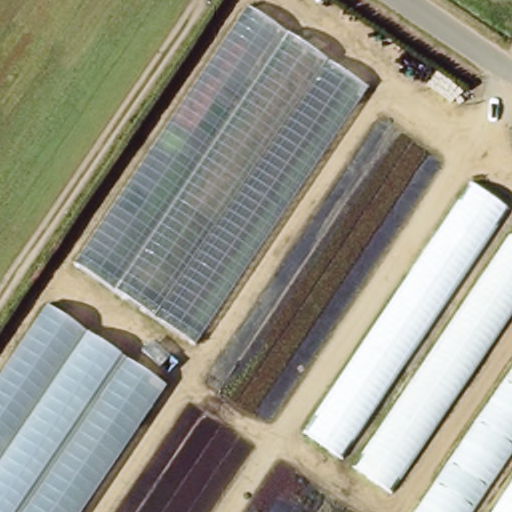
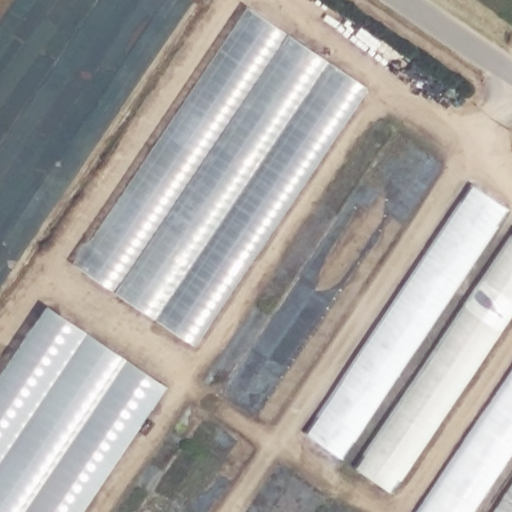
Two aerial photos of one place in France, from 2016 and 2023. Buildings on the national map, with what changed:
unchanged [(366,81),(189,340),(78,264),(248,9),(366,81)]
unchanged [(474,185),(512,211),(512,512),(418,512),(307,437),(474,185)]
unchanged [(77,512),(0,512),(0,376),(48,306),(164,381),(77,512)]

